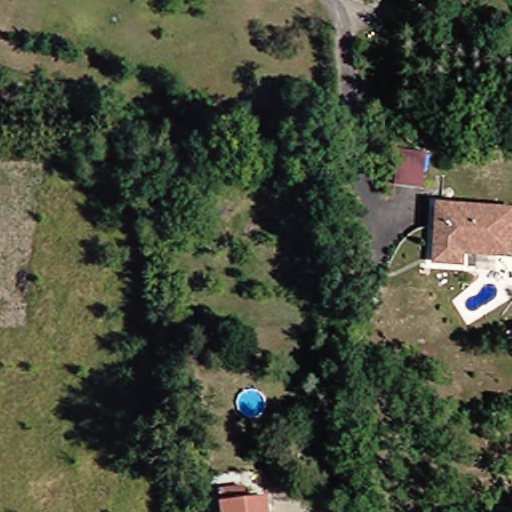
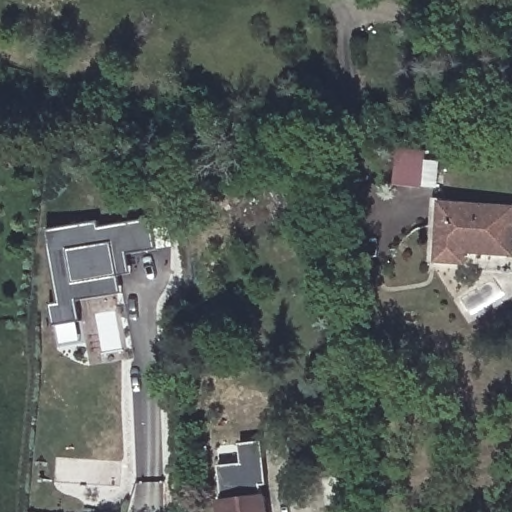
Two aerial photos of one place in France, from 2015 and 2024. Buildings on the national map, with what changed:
unchanged [(425,143),(427,178),(400,179),(399,145),(425,143)]
unchanged [(460,262),(435,261),(438,205),(511,210),(508,255),(460,253),(460,262)]
new [(156,250),(128,254),(131,274),(119,277),(121,293),(78,299),(81,320),(54,324),(51,305),(60,303),(49,230),(99,222),(100,227),(151,220),(156,250)]
unchanged [(215,486),(240,481),(242,492),(260,489),(261,495),(264,512),(219,512),(217,502),(216,496),(215,486)]

